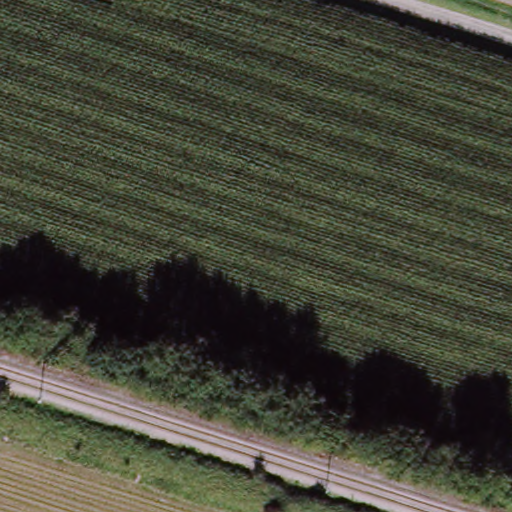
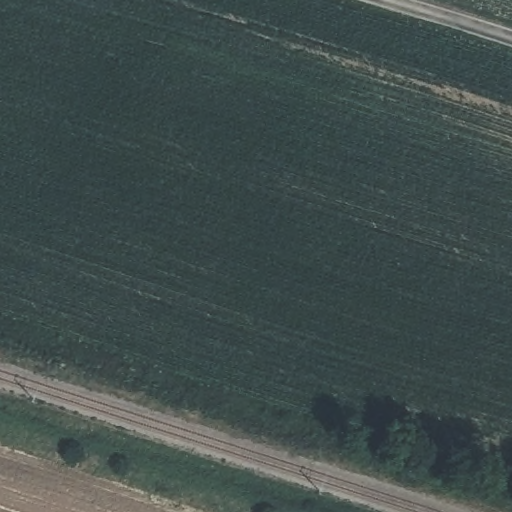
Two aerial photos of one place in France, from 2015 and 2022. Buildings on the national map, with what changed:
[]

